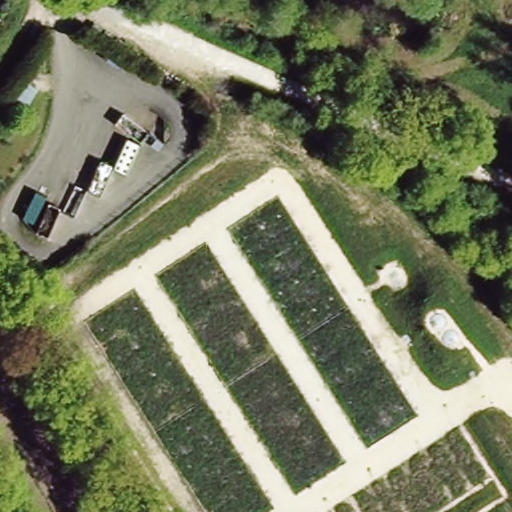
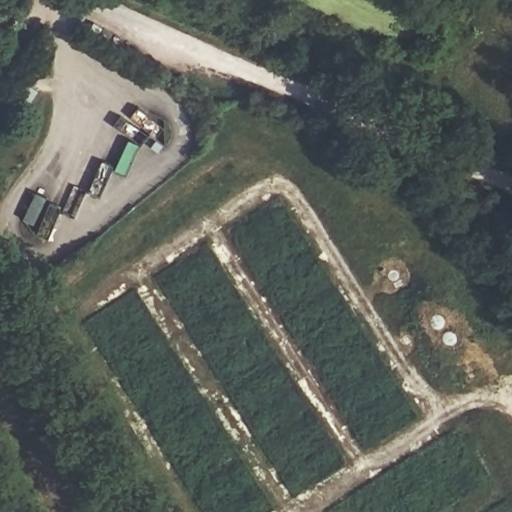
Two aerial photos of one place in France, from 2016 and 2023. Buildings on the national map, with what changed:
unchanged [(0,19),(4,22),(0,29),(0,19)]

